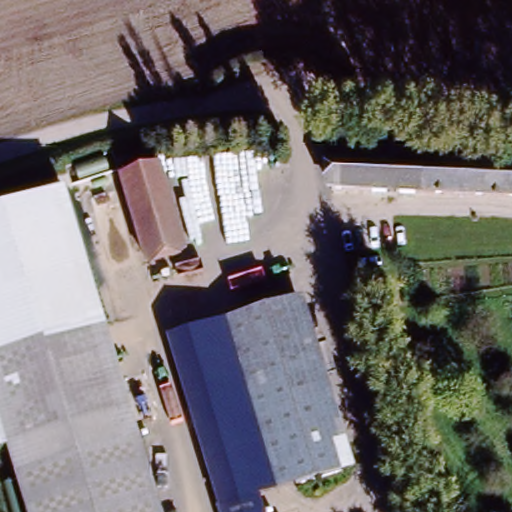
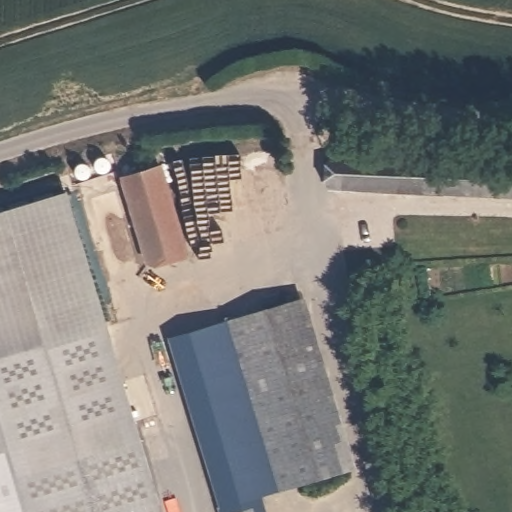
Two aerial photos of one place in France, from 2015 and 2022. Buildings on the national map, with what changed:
unchanged [(329,156),(331,137),(331,134),(393,136),(393,140),(393,159),(329,156)]
unchanged [(155,156),(185,238),(146,252),(115,171),(155,156)]
unchanged [(512,162),(512,194),(329,188),(329,156),(393,159),(512,162)]
unchanged [(0,211),(64,191),(160,512),(0,512),(0,211)]
unchanged [(303,298),(354,469),(259,498),(263,512),(215,512),(215,511),(165,339),(303,298)]

